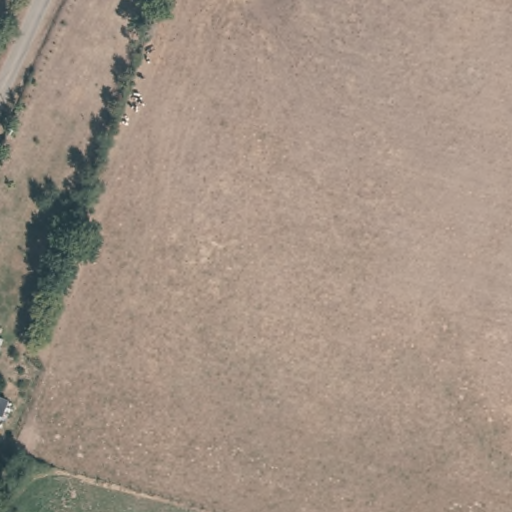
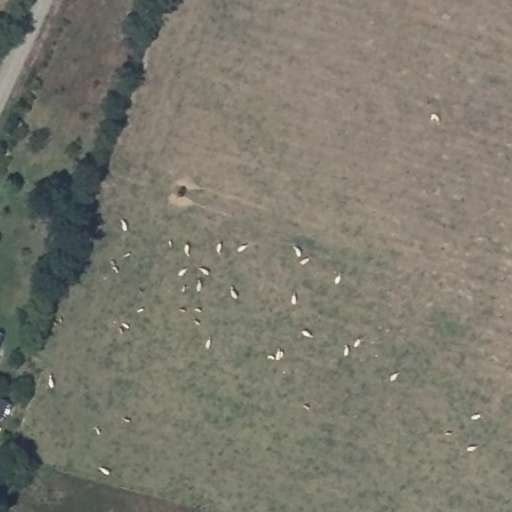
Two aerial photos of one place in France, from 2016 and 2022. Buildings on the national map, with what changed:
unchanged [(0,409),(0,397),(3,398),(0,409)]

